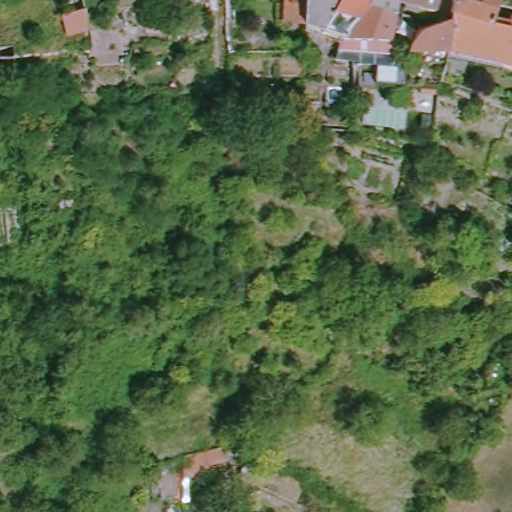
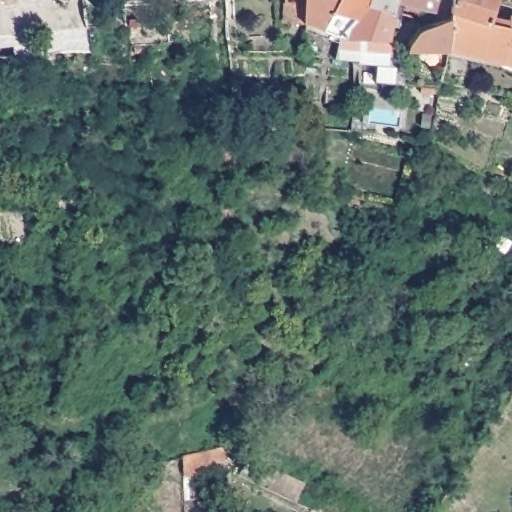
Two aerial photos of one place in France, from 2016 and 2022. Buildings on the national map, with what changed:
unchanged [(363,0),(360,7),(335,37),(299,24),(280,20),(280,0),(363,0)]
unchanged [(392,67),(380,66),(361,64),(361,61),(349,60),(338,59),(340,39),(335,37),(360,7),(363,0),(433,0),(430,12),(410,7),(398,4),(397,14),(390,42),(387,42),(387,46),(390,50),(395,54),(392,67)]
unchanged [(494,0),(490,18),(447,12),(448,0),(494,0)]
unchanged [(87,29),(68,31),(65,13),(85,11),(87,29)]
unchanged [(473,57),(443,51),(407,48),(408,42),(415,26),(446,19),(447,12),(490,18),(500,20),(506,21),(507,17),(512,18),(512,68),(473,57)]

